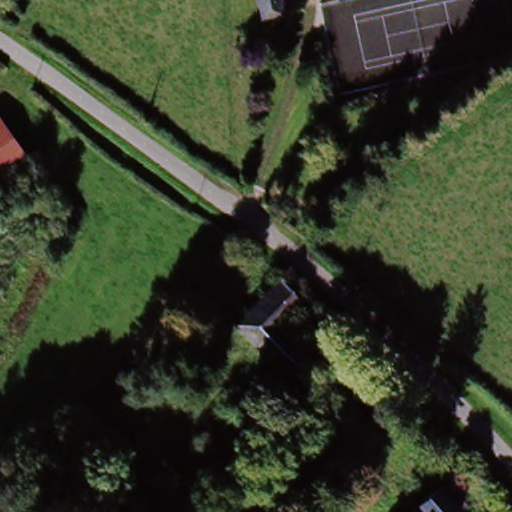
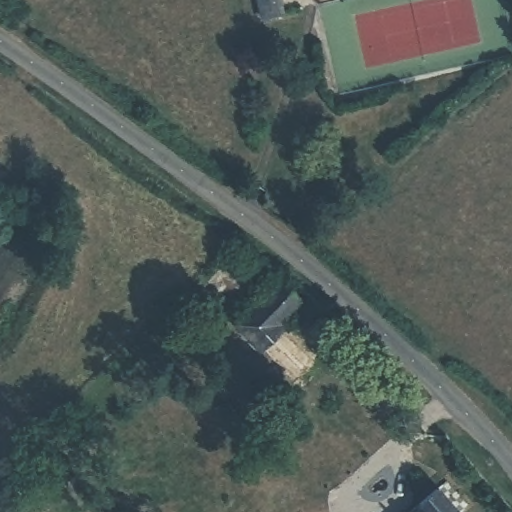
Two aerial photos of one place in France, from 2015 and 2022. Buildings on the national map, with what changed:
unchanged [(280,2),(260,8),(257,0),(279,0),(280,2)]
demolished [(24,156),(0,175),(0,121),(24,156)]
unchanged [(305,359),(283,376),(232,319),(273,283),(290,303),(270,320),(305,359)]
unchanged [(448,512),(409,512),(432,493),(448,512)]

